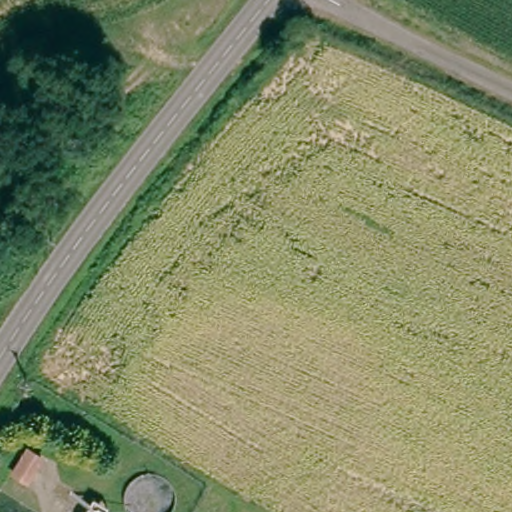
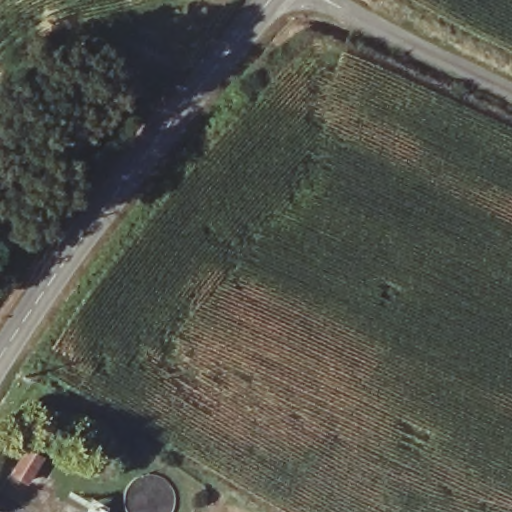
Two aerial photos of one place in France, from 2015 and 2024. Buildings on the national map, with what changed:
unchanged [(44,455),(31,480),(13,471),(26,446),(44,455)]

